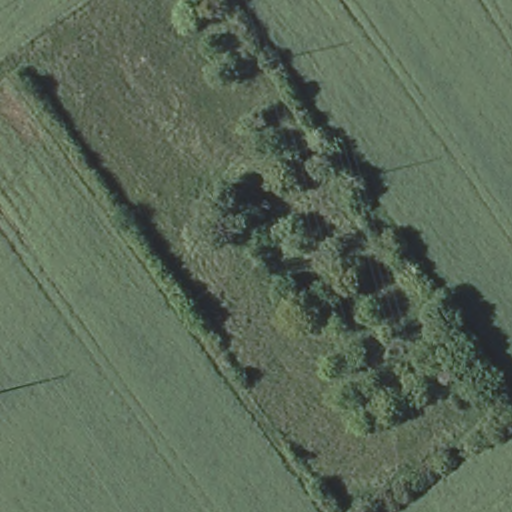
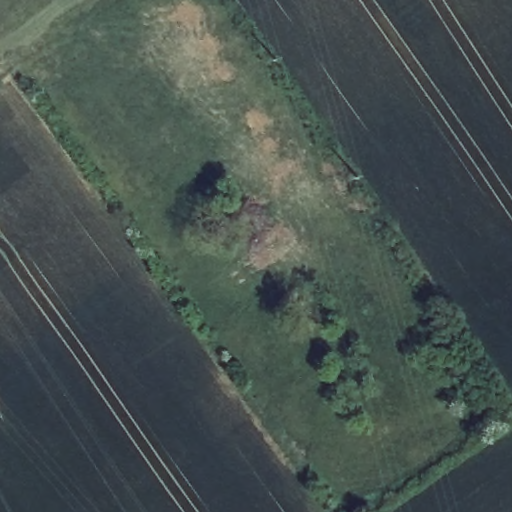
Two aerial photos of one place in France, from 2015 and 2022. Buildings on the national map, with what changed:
unchanged [(238,220),(259,202),(275,233),(253,250),(238,220)]

